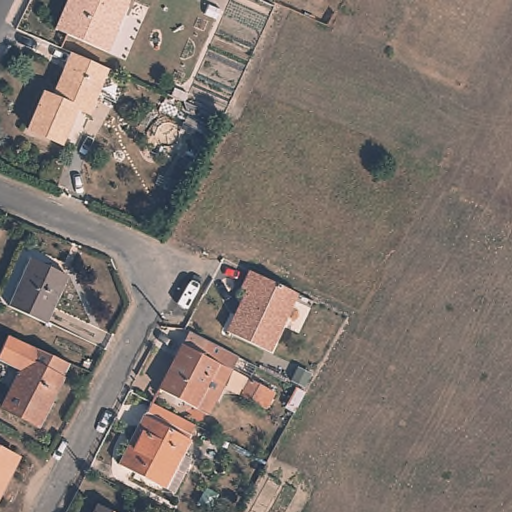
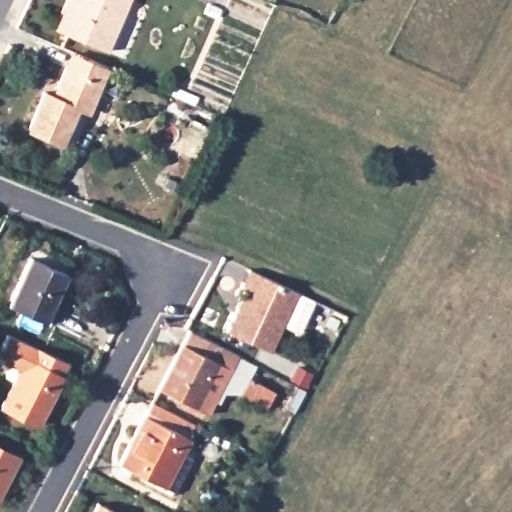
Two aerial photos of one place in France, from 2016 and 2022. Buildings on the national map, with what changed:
unchanged [(52,25),(64,0),(78,0),(127,0),(105,49),(65,31),(52,25)]
unchanged [(59,140),(25,126),(41,89),(51,92),(64,62),(70,50),(87,57),(105,65),(85,110),(74,105),(59,140)]
unchanged [(46,320),(10,303),(30,260),(66,275),(46,320)]
unchanged [(296,291),(270,351),(226,332),(244,291),(239,289),(246,270),(296,291)]
unchanged [(207,353),(222,360),(193,419),(144,394),(173,336),(207,353)]
unchanged [(0,417),(0,413),(28,356),(35,359),(64,372),(35,433),(0,417)]
unchanged [(305,384),(291,377),(297,364),(311,370),(305,384)]
unchanged [(266,409),(250,400),(241,395),(252,377),(260,381),(276,390),(266,409)]
unchanged [(306,389),(296,409),(287,404),(297,385),(297,384),(306,389)]
unchanged [(175,491),(164,486),(120,464),(152,402),(195,424),(188,436),(190,439),(182,452),(192,457),(175,491)]
unchanged [(0,448),(16,456),(0,493),(0,448)]
unchanged [(99,502),(118,512),(93,512),(99,502)]

